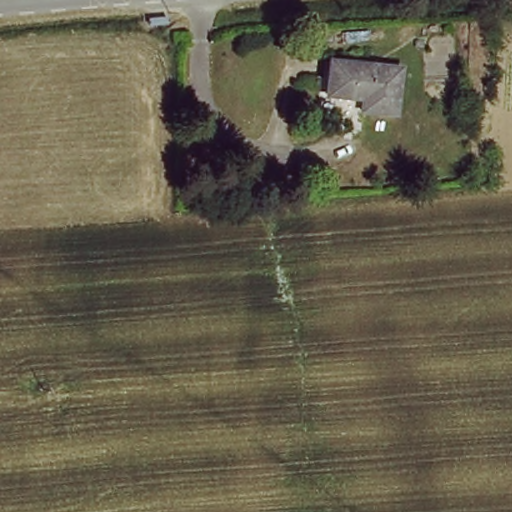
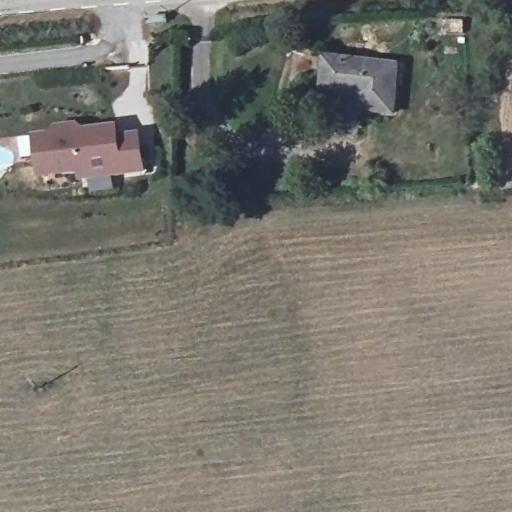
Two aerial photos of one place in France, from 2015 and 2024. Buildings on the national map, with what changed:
unchanged [(401,66),(397,115),(363,112),(364,98),(328,95),(332,60),(401,66)]
new [(52,139),(57,132),(78,130),(85,135),(117,131),(118,141),(139,139),(142,172),(80,180),(79,172),(40,177),(36,141),(52,139)]

